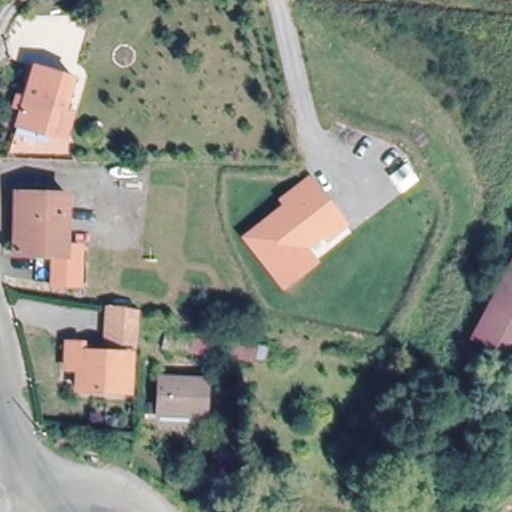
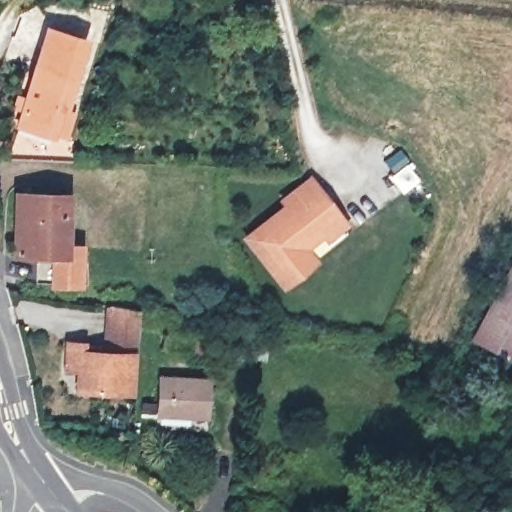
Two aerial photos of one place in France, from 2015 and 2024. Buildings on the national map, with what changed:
new [(44,25),(90,38),(77,78),(72,76),(34,65),(44,25)]
unchanged [(64,133),(51,129),(50,133),(16,124),(34,65),(72,76),(64,106),(71,108),(64,133)]
unchanged [(252,233),(281,211),(277,206),(303,185),(337,229),(320,242),(316,238),(297,253),(307,267),(277,290),(245,248),(240,242),(252,233)]
unchanged [(72,276),(46,275),(47,247),(7,246),(9,187),(60,188),(58,238),(72,238),(72,276)]
unchanged [(512,255),(512,330),(478,310),(512,255)]
unchanged [(512,330),(512,357),(507,366),(461,339),(478,310),(512,330)]
unchanged [(135,321),(131,361),(100,356),(104,316),(135,321)]
unchanged [(261,348),(257,364),(214,358),(206,358),(206,353),(167,346),(169,333),(215,341),(215,337),(261,348)]
unchanged [(119,402),(69,394),(72,375),(57,373),(61,347),(80,350),(79,355),(126,363),(119,402)]
unchanged [(207,419),(162,418),(162,383),(209,384),(207,419)]

